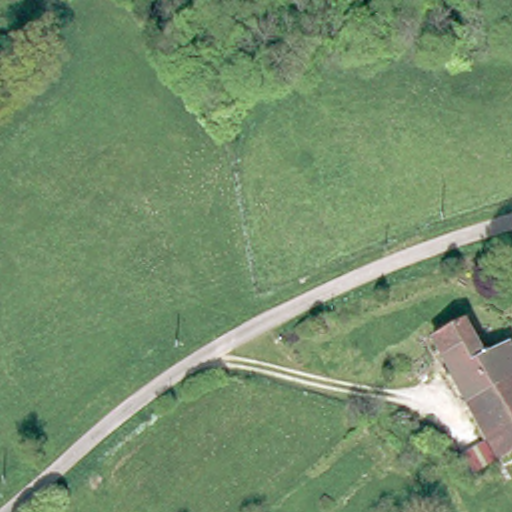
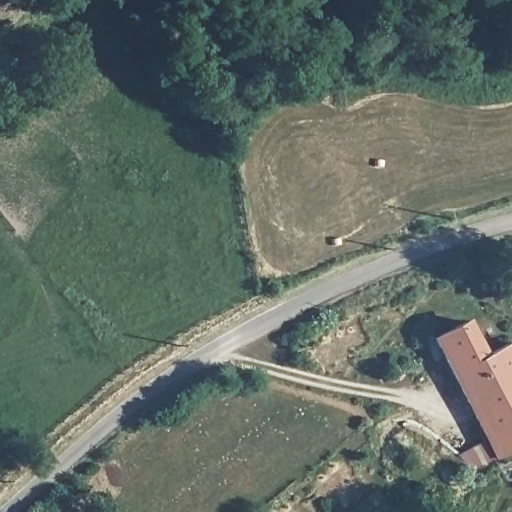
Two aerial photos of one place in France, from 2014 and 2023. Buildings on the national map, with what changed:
unchanged [(435,338),(466,321),(484,353),(508,341),(512,348),(512,449),(499,456),(435,338)]

